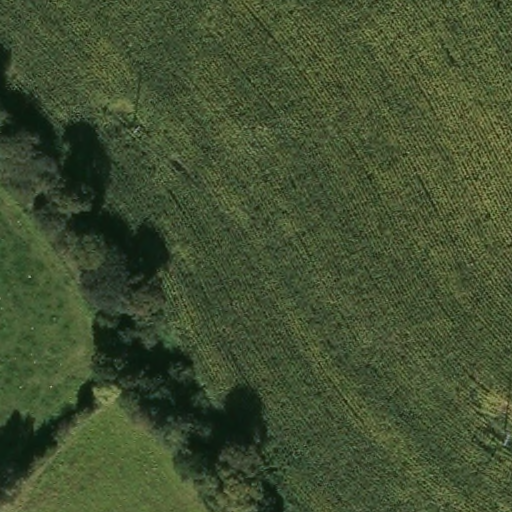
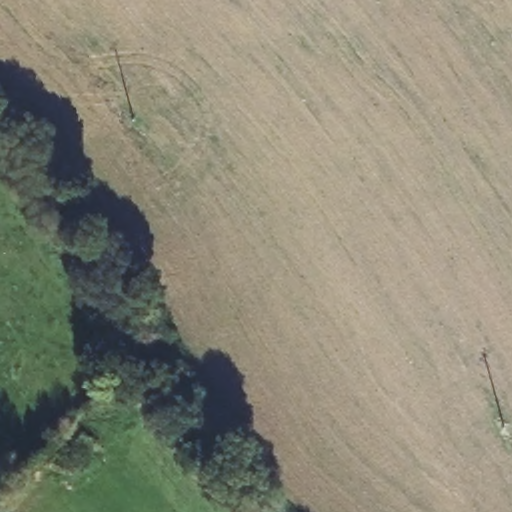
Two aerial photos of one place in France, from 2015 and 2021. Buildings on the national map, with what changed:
[]

